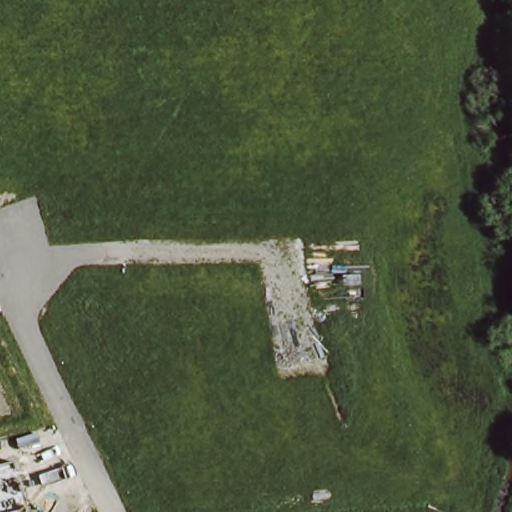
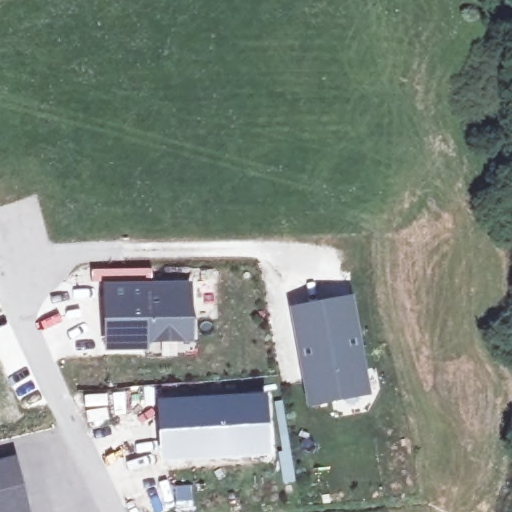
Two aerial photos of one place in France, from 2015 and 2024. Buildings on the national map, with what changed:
new [(198,357),(146,357),(146,347),(108,348),(107,288),(189,287),(190,340),(198,340),(198,357)]
new [(289,308),(352,296),(370,396),(307,408),(289,308)]
new [(266,392),(270,457),(161,462),(157,400),(266,392)]
new [(26,512),(0,512),(0,464),(14,461),(26,512)]

